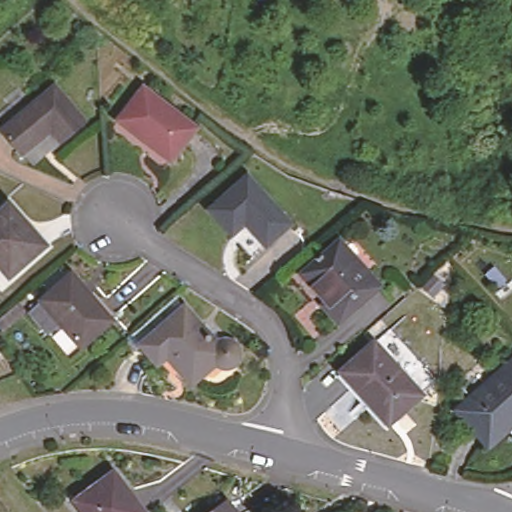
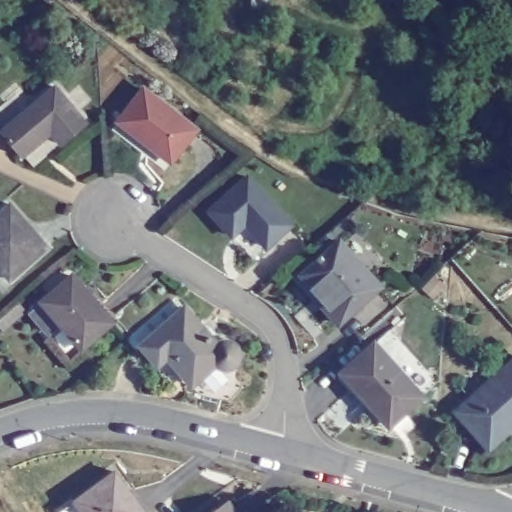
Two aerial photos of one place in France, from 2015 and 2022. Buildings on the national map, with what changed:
unchanged [(142,82),(193,122),(168,156),(115,115),(142,82)]
unchanged [(52,84),(81,121),(56,141),(46,130),(18,152),(0,131),(0,125),(52,84)]
unchanged [(246,174),(287,222),(262,244),(242,221),(227,232),(206,208),(246,174)]
unchanged [(0,266),(0,207),(8,200),(45,242),(8,275),(0,266)]
unchanged [(320,258),(319,257),(325,252),(326,254),(343,240),(381,285),(339,320),(325,302),(327,299),(304,272),(320,258)]
unchanged [(65,272),(105,320),(75,346),(35,298),(65,272)]
unchanged [(221,343),(228,342),(233,345),(237,348),(239,355),(238,360),(233,366),(229,367),(224,367),(218,364),(196,382),(190,382),(186,381),(167,359),(157,367),(141,347),(131,335),(174,298),(185,311),(216,347),(221,343)]
unchanged [(371,341),(416,393),(383,422),(338,370),(371,341)]
unchanged [(509,422),(510,425),(486,447),(452,408),(512,354),(512,419),(509,422)]
unchanged [(110,467),(143,512),(81,512),(70,497),(110,467)]
unchanged [(235,512),(206,512),(225,498),(235,512)]

